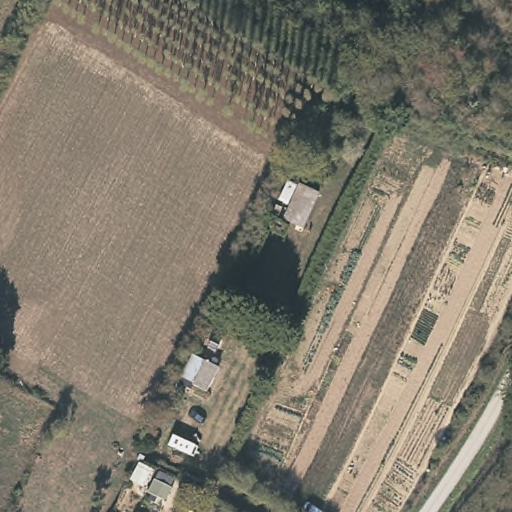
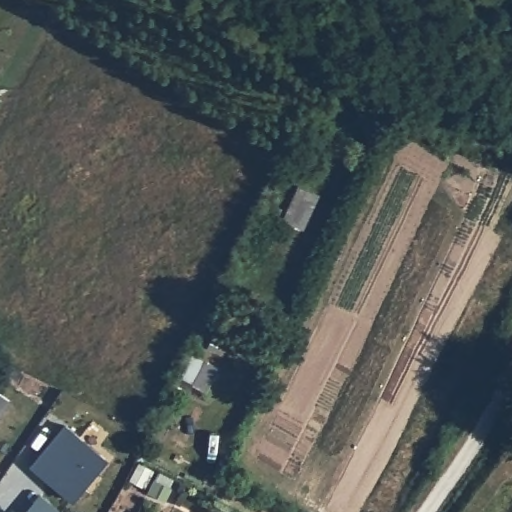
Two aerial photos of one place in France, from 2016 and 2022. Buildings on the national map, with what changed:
unchanged [(302,222),(282,214),(296,181),(316,189),(302,222)]
unchanged [(208,390),(182,376),(194,355),(220,368),(208,390)]
demolished [(19,395),(0,429),(0,384),(19,395)]
new [(12,400),(0,418),(0,391),(12,400)]
new [(74,502),(30,466),(65,424),(108,458),(74,502)]
demolished [(4,512),(0,512),(0,481),(14,493),(4,512)]

